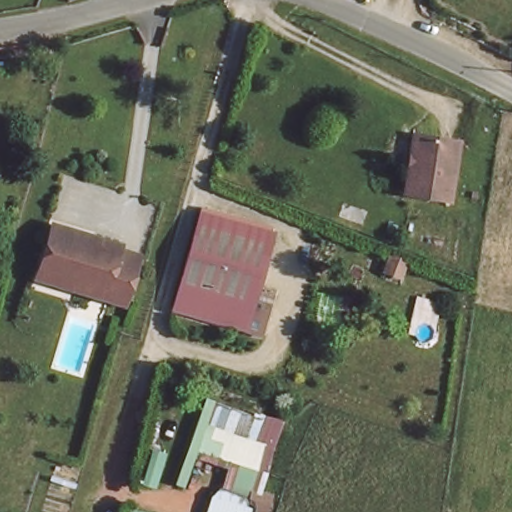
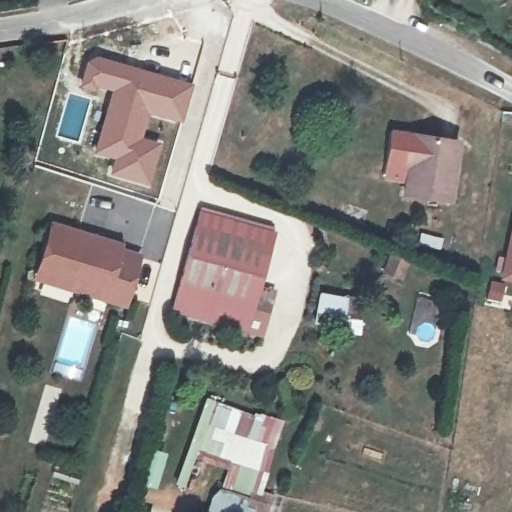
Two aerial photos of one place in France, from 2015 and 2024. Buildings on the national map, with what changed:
new [(86,62),(91,58),(96,56),(194,84),(182,125),(150,117),(144,137),(162,142),(151,188),(108,175),(112,160),(93,155),(110,92),(79,88),(86,62)]
unchanged [(457,133),(455,163),(451,198),(405,193),(411,139),(412,128),(457,133)]
unchanged [(263,335),(241,327),(174,301),(201,207),(271,232),(253,295),(275,303),(263,335)]
new [(512,217),(512,283),(498,280),(512,217)]
unchanged [(108,237),(105,247),(130,253),(120,294),(95,289),(96,284),(33,270),(45,224),(108,237)]
unchanged [(281,491),(274,512),(232,512),(235,499),(223,492),(230,466),(195,455),(212,399),(281,423),(270,485),(281,491)]

